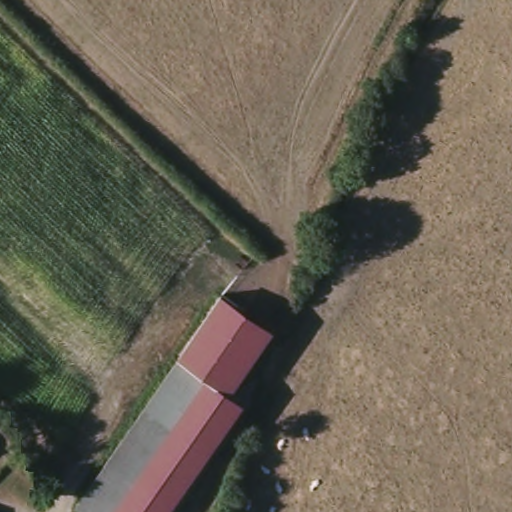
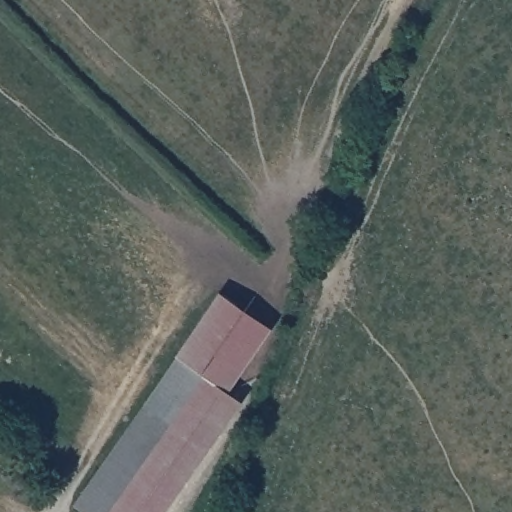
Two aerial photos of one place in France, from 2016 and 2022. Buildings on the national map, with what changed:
unchanged [(205,292),(257,322),(219,388),(232,396),(165,511),(164,512),(75,512),(110,454),(205,292)]

